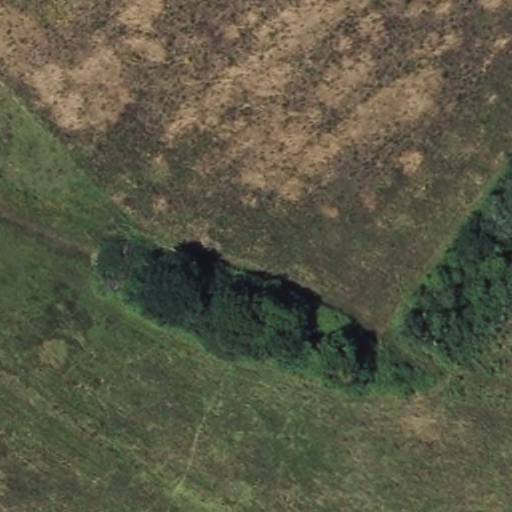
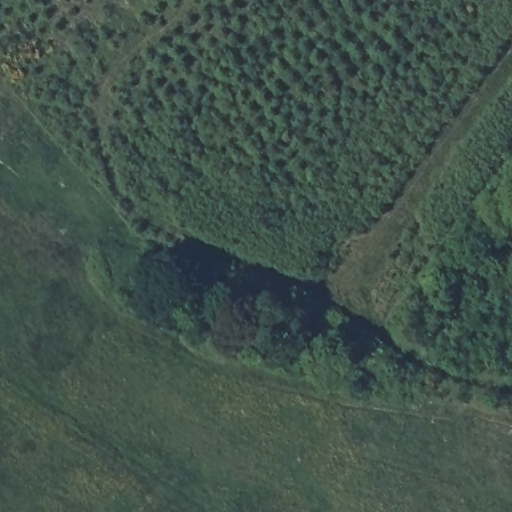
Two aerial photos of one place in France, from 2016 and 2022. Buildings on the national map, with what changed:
[]

